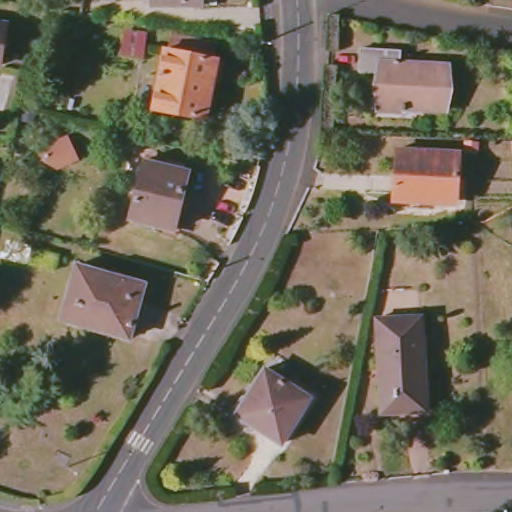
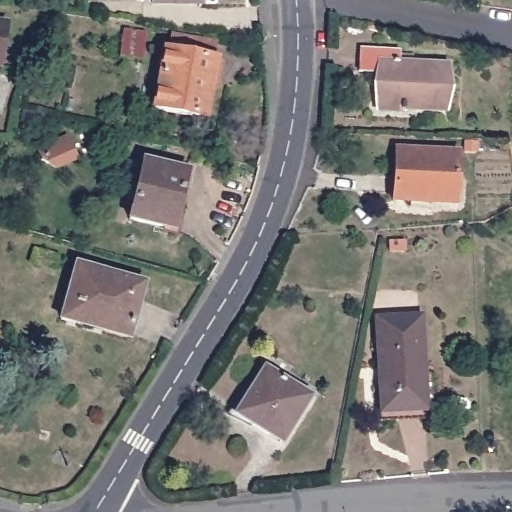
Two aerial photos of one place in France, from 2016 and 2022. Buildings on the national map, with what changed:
unchanged [(201,5),(153,5),(153,0),(201,0),(201,5)]
unchanged [(5,25),(0,59),(0,24),(5,25)]
unchanged [(145,47),(143,59),(120,56),(122,43),(145,47)]
unchanged [(168,45),(210,52),(207,69),(212,70),(211,73),(217,74),(214,92),(208,91),(207,94),(200,92),(193,128),(148,119),(160,59),(165,61),(168,45)]
unchanged [(400,51),(399,63),(447,66),(445,111),(400,108),(399,111),(378,110),(380,84),(385,85),(385,73),(359,72),(360,49),(400,51)]
unchanged [(67,136),(75,158),(53,165),(40,158),(37,147),(67,136)]
unchanged [(458,153),(456,198),(412,195),(412,202),(393,201),(396,149),(458,153)]
unchanged [(144,161),(188,171),(174,231),(130,221),(144,161)]
unchanged [(35,250),(57,256),(55,269),(31,263),(34,250),(35,250)]
unchanged [(136,282),(123,328),(87,317),(85,326),(62,320),(76,265),(136,282)]
unchanged [(422,316),(426,411),(381,413),(376,318),(422,316)]
unchanged [(265,368),(311,397),(282,444),(236,414),(265,368)]

